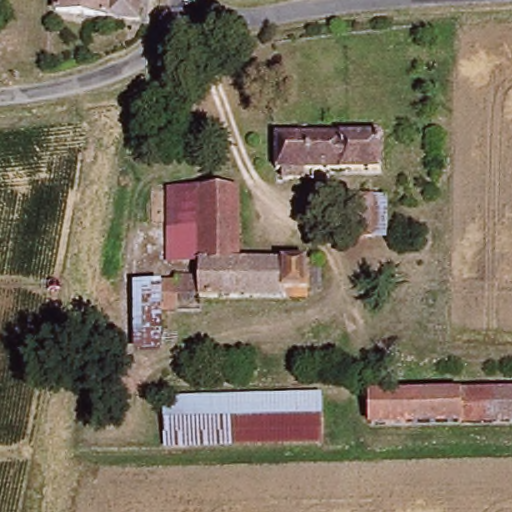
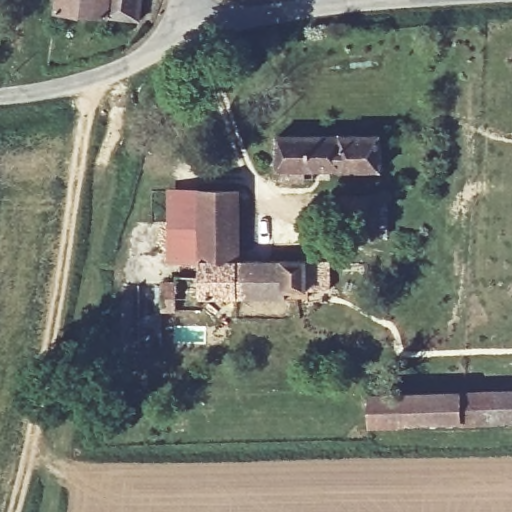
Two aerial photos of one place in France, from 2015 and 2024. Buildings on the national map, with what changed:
unchanged [(137,25),(54,7),(55,0),(142,0),(137,25)]
unchanged [(283,167),(275,167),(276,133),(384,132),(385,166),(373,166),(310,167),(309,176),(283,177),(283,167)]
unchanged [(241,190),(243,258),(310,256),(311,287),(299,288),(299,296),(207,302),(205,290),(181,291),(182,307),(167,310),(167,274),(202,272),(202,257),(210,257),(207,187),(241,190)]
unchanged [(185,188),(207,187),(210,257),(202,257),(184,257),(185,188)]
unchanged [(342,194),(373,195),(373,241),(367,242),(342,241),(342,194)]
unchanged [(512,390),(512,425),(372,427),(372,392),(512,390)]
demolished [(326,395),(325,443),(166,447),(167,397),(326,395)]

